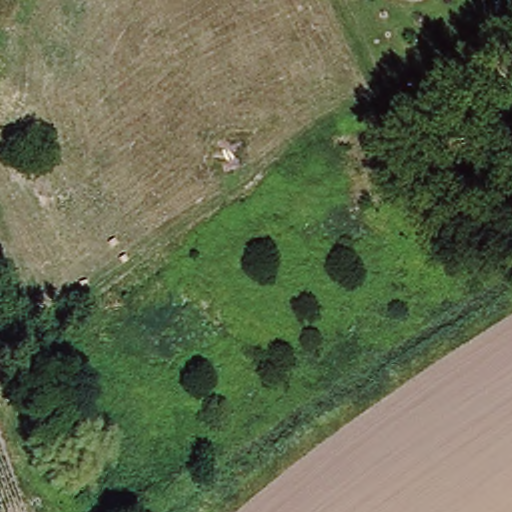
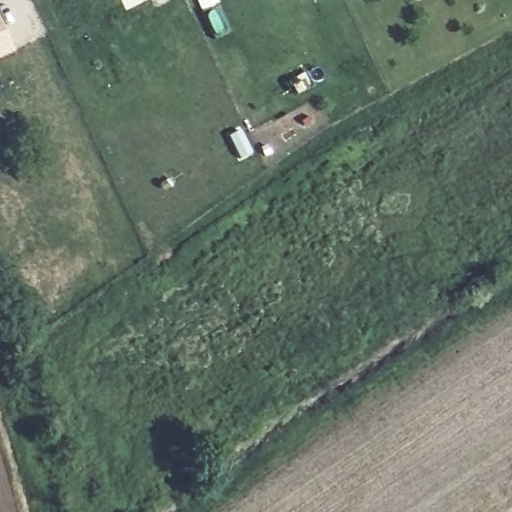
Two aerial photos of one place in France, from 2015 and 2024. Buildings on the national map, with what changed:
new [(15,52),(0,58),(0,24),(15,52)]

